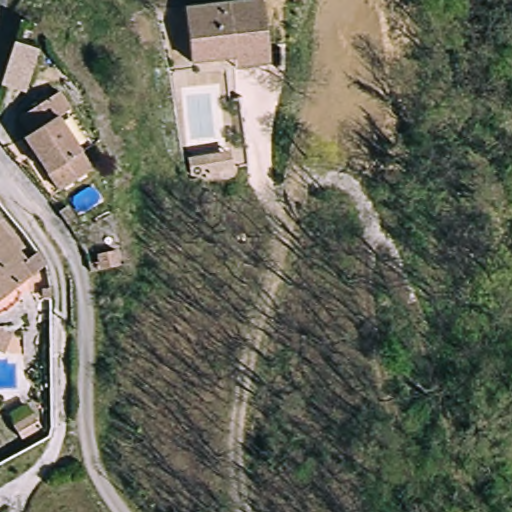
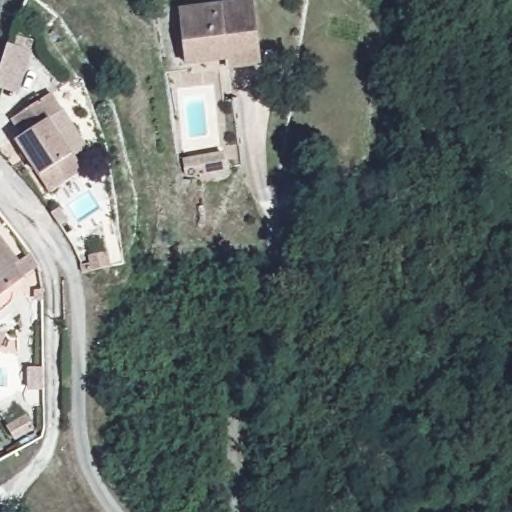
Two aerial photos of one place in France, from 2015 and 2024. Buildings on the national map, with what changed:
unchanged [(265,67),(232,72),(231,62),(190,68),(181,12),(232,4),(254,0),(256,8),(265,67)]
unchanged [(1,84),(14,45),(38,53),(24,94),(0,86),(1,84)]
unchanged [(64,107),(52,115),(86,171),(54,191),(21,137),(28,132),(17,115),(55,92),(64,107)]
unchanged [(22,258),(36,251),(47,269),(28,281),(0,299),(0,226),(22,258)]
unchanged [(112,250),(117,263),(90,272),(86,259),(112,250)]
unchanged [(10,333),(6,353),(0,352),(0,331),(10,333)]
unchanged [(28,412),(38,432),(19,442),(7,422),(28,412)]

